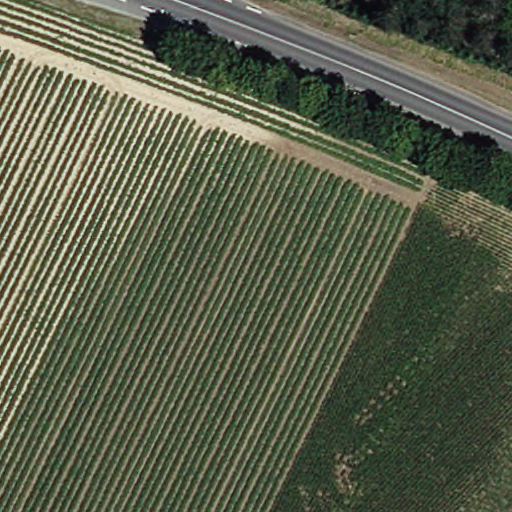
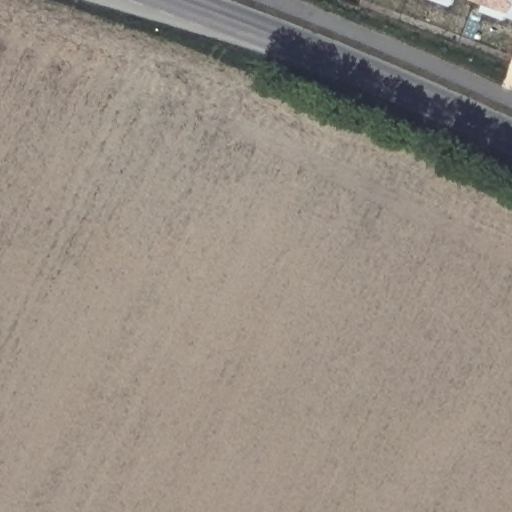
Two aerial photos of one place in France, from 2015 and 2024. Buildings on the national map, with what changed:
new [(452,7),(433,0),(454,0),(452,7)]
new [(474,0),(512,0),(512,18),(508,17),(507,21),(483,12),(485,5),(474,0)]

